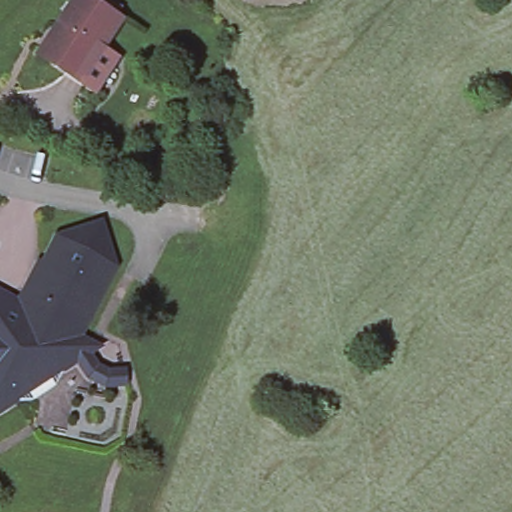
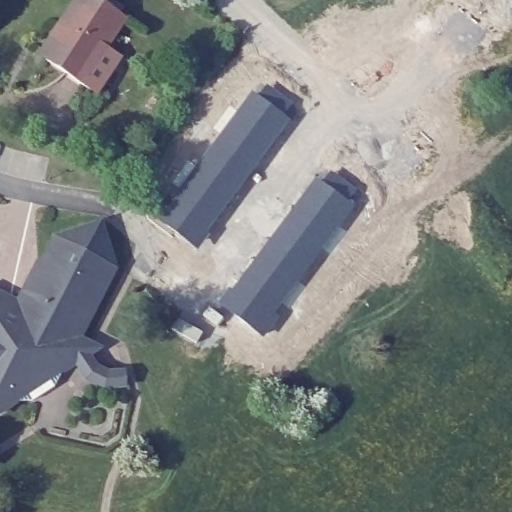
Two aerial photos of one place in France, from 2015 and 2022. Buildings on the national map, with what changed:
unchanged [(125,20),(107,49),(85,84),(44,58),(55,41),(52,39),(78,0),(93,0),(125,20)]
new [(292,118),(198,250),(161,220),(252,91),(292,118)]
new [(316,177),(356,205),(263,338),(220,302),(316,177)]
unchanged [(0,294),(15,294),(53,238),(105,221),(117,271),(85,338),(101,347),(102,352),(92,360),(130,383),(100,391),(87,383),(67,370),(13,405),(0,417),(0,294)]
unchanged [(87,383),(73,396),(70,407),(70,418),(59,431),(41,426),(42,403),(50,390),(67,370),(87,383)]

